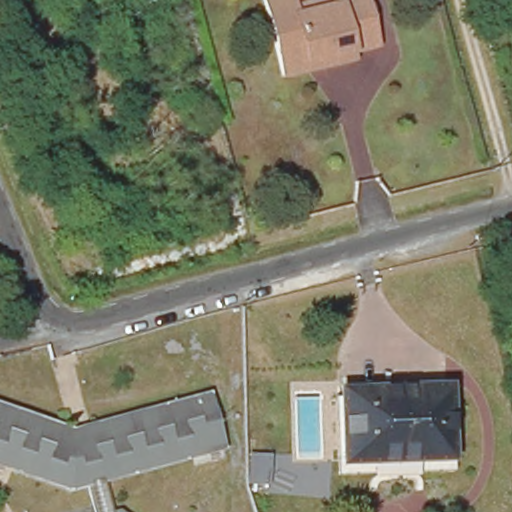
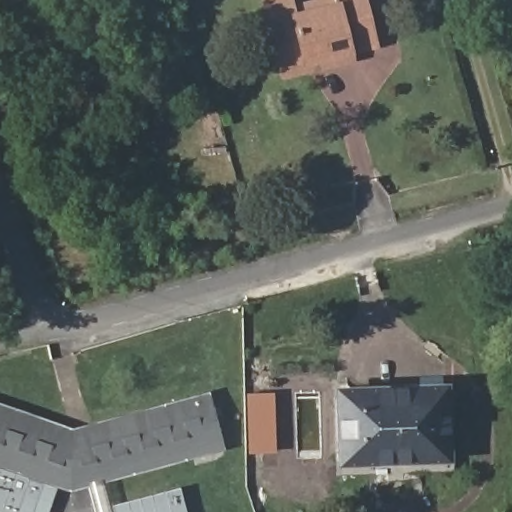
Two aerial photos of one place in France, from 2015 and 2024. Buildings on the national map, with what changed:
unchanged [(280,76),(261,0),(288,0),(290,6),(316,0),(362,0),(373,45),(348,51),(350,59),(305,70),(280,76)]
unchanged [(339,382),(378,381),(445,379),(446,450),(340,452),(339,387),(339,382)]
unchanged [(83,484),(66,489),(0,468),(0,412),(66,433),(203,395),(217,445),(98,480),(106,512),(91,512),(83,484)]
unchanged [(446,450),(446,462),(340,465),(340,452),(446,450)]
new [(49,512),(1,512),(0,512),(0,468),(58,487),(49,512)]
new [(112,505),(180,487),(186,512),(114,512),(112,505)]

